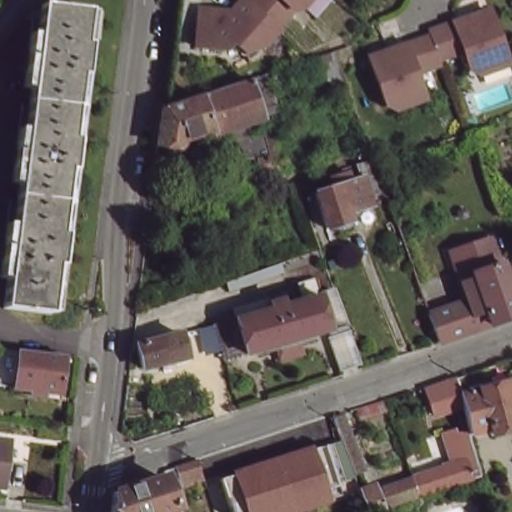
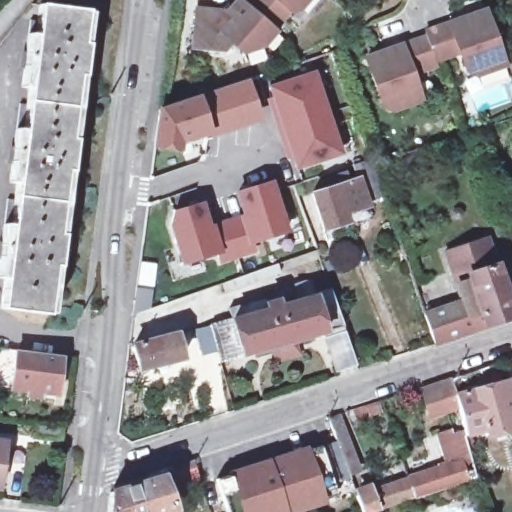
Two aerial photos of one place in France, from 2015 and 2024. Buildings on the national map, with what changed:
unchanged [(265,40),(244,48),(232,40),(222,46),(192,41),(195,4),(223,7),(230,0),(241,0),(244,3),(255,12),(273,29),(265,40)]
unchanged [(255,12),(244,3),(247,0),(299,0),(295,6),(291,6),(274,26),(275,27),(273,29),(255,12)]
unchanged [(511,0),(512,0),(512,4),(511,0)]
unchanged [(422,28),(483,8),(500,62),(472,72),(462,66),(456,49),(432,57),(423,33),(422,28)]
unchanged [(23,134),(29,92),(22,91),(27,37),(35,38),(38,9),(85,14),(81,47),(85,47),(83,79),(78,79),(70,142),(75,143),(70,175),(67,174),(59,237),(62,237),(60,269),(56,269),(49,318),(2,313),(5,282),(0,281),(0,272),(5,226),(12,226),(18,187),(10,186),(17,133),(23,134)]
unchanged [(407,70),(415,96),(387,104),(377,99),(362,52),(423,33),(432,57),(434,61),(407,70)]
new [(287,143),(276,112),(272,100),(277,99),(273,87),(315,73),(341,152),(299,166),(295,154),(290,155),(287,143)]
unchanged [(240,85),(252,81),(263,113),(252,117),(250,117),(200,134),(200,136),(172,145),(170,153),(145,150),(150,115),(240,85)]
unchanged [(363,159),(366,168),(350,173),(345,159),(360,154),(363,159)]
unchanged [(337,208),(340,217),(317,225),(305,189),(350,173),(359,199),(337,208)]
new [(176,213),(203,205),(210,229),(247,218),(240,194),(273,184),(287,233),(252,244),(255,252),(222,262),(220,253),(185,263),(173,224),(176,213)]
unchanged [(416,310),(452,298),(436,248),(480,233),(506,312),(427,338),(416,310)]
unchanged [(272,354),(269,341),(216,357),(213,345),(200,348),(192,323),(205,319),(228,313),(225,304),(260,293),(260,296),(273,292),(276,299),(296,293),(291,280),(310,274),(314,288),(327,283),(352,358),(332,365),(320,326),(291,335),(295,347),(272,354)]
unchanged [(172,329),(180,353),(136,365),(130,341),(172,329)]
unchanged [(57,398),(12,393),(18,355),(62,360),(57,398)]
unchanged [(455,409),(430,417),(421,390),(448,382),(452,400),(505,386),(512,409),(512,414),(502,418),(507,435),(483,442),(482,438),(464,444),(460,432),(455,409)]
unchanged [(379,401),(383,413),(361,421),(357,408),(379,401)]
unchanged [(342,418),(360,469),(350,473),(332,421),(342,418)]
unchanged [(36,423),(62,427),(60,440),(34,437),(36,423)]
unchanged [(411,503),(405,483),(445,470),(435,434),(450,430),(452,435),(460,432),(464,444),(473,482),(411,503)]
unchanged [(0,440),(5,441),(0,481),(0,440)]
unchanged [(323,445),(335,488),(322,494),(325,504),(298,512),(227,512),(215,478),(323,445)]
unchanged [(170,469),(192,462),(207,457),(215,478),(200,483),(177,490),(170,469)]
unchanged [(169,478),(179,512),(119,512),(122,493),(169,478)]
unchanged [(357,512),(353,500),(405,483),(411,503),(384,512),(357,512)]

